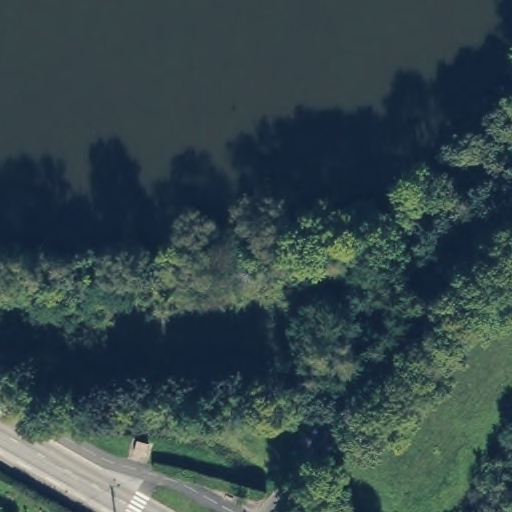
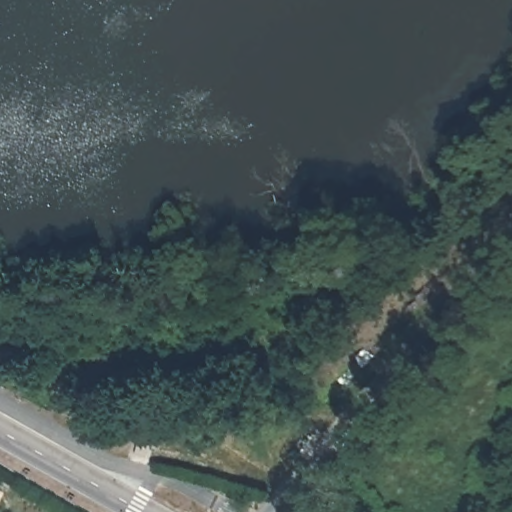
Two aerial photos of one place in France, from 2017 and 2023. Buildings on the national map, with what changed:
unchanged [(137,443),(148,445),(146,456),(135,454),(137,443)]

